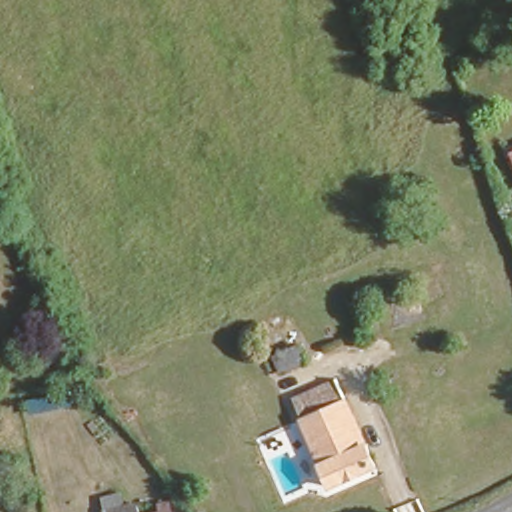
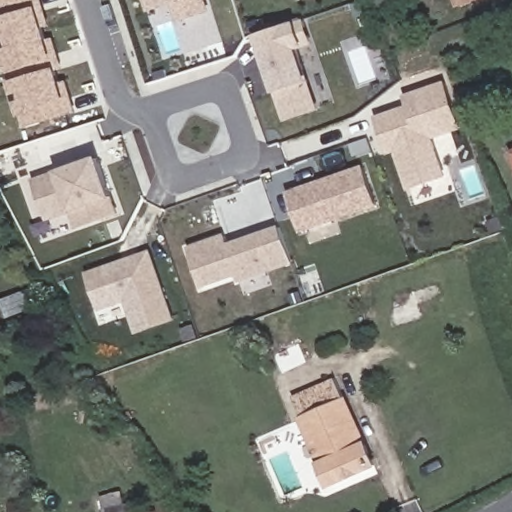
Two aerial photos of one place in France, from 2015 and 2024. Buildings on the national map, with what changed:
new [(50,25),(45,24),(49,36),(54,36),(64,68),(59,68),(62,78),(67,79),(75,112),(24,127),(20,114),(20,112),(0,46),(0,0),(42,0),(50,25)]
new [(206,11),(175,20),(170,2),(146,9),(143,0),(203,0),(206,11)]
new [(458,8),(456,0),(478,0),(458,8)]
new [(296,18),(303,43),(297,46),(318,107),(281,119),(268,87),(248,31),(296,18)]
new [(405,106),(402,92),(445,79),(460,130),(432,139),(445,176),(404,189),(392,152),(385,154),(374,115),(405,106)]
new [(97,155),(115,213),(72,228),(65,205),(35,214),(23,178),(97,155)]
new [(361,162),(376,205),(297,233),(285,190),(361,162)]
new [(222,231),(225,241),(276,225),(290,265),(235,282),(234,276),(198,288),(184,244),(222,231)]
new [(149,248),(174,318),(134,332),(122,300),(97,308),(85,269),(149,248)]
demolished [(471,358),(468,347),(461,324),(447,283),(445,275),(473,265),(486,261),(508,333),(512,343),(512,345),(503,348),(471,358)]
demolished [(276,316),(290,312),(300,343),(288,347),(276,316)]
demolished [(278,374),(270,356),(298,344),(307,363),(278,374)]
unchanged [(296,390),(343,375),(377,469),(331,485),(296,390)]
new [(69,393),(71,405),(31,413),(29,401),(69,393)]
unchanged [(123,499),(125,509),(139,506),(140,512),(106,512),(104,503),(123,499)]
unchanged [(165,505),(167,512),(153,512),(152,507),(165,505)]

